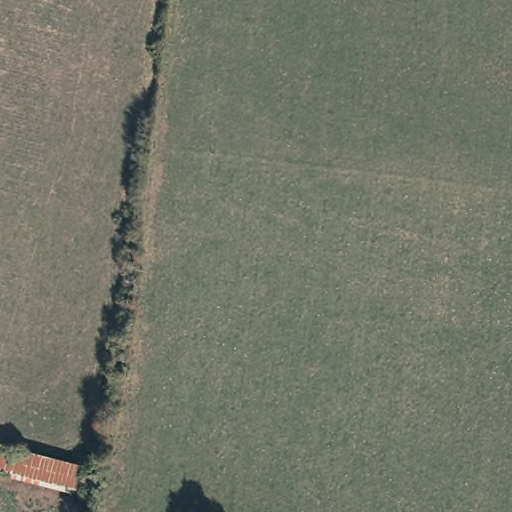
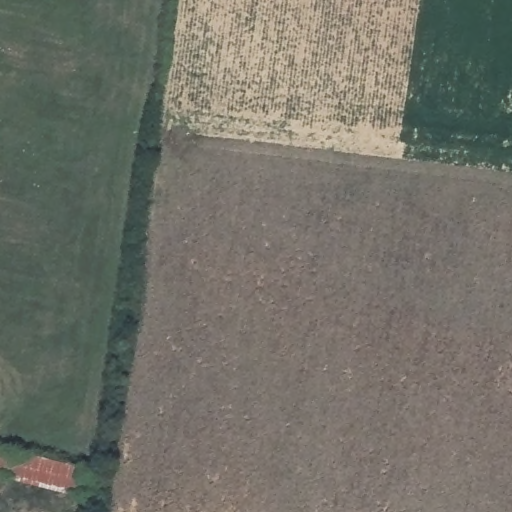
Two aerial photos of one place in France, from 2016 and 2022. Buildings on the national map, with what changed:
unchanged [(94,471),(87,496),(0,474),(0,446),(94,471)]

